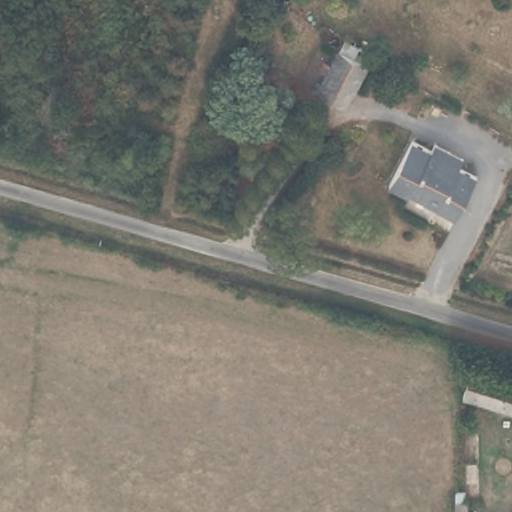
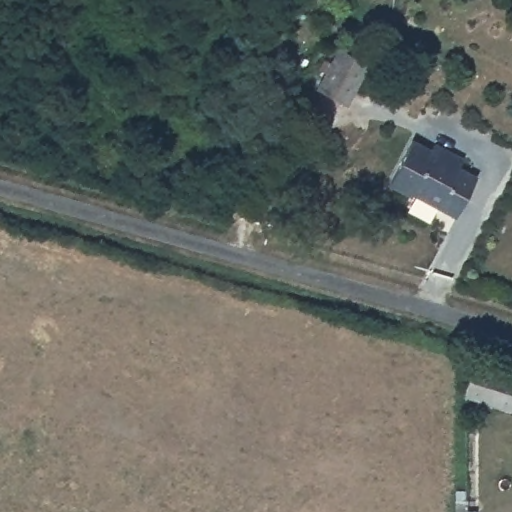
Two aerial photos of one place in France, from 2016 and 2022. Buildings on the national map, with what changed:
unchanged [(344,106),(316,91),(339,49),(366,63),(344,106)]
unchanged [(433,139),(464,157),(458,167),(477,178),(456,215),(411,190),(409,193),(387,181),(412,137),(429,146),(433,139)]
unchanged [(512,409),(464,395),(473,366),(512,377),(512,409)]

